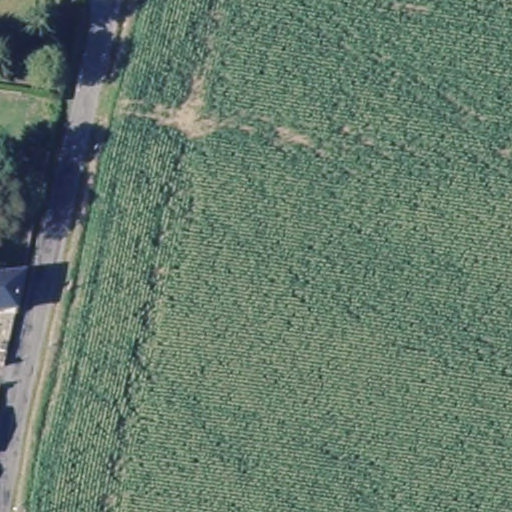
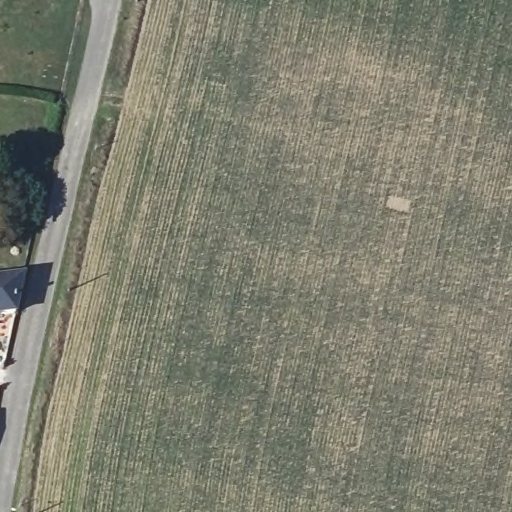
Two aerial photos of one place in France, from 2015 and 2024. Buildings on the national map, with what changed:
unchanged [(20,316),(0,316),(0,279),(29,278),(20,316)]

